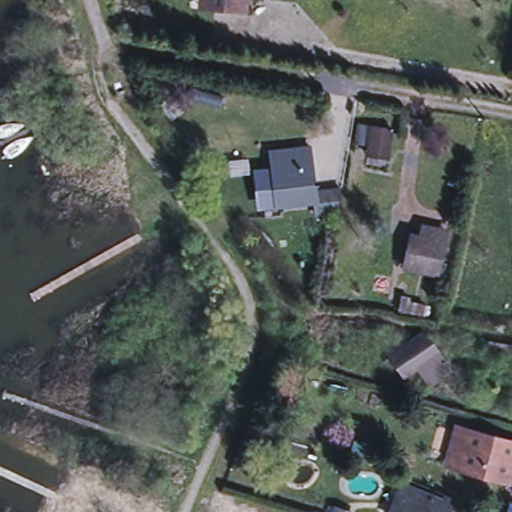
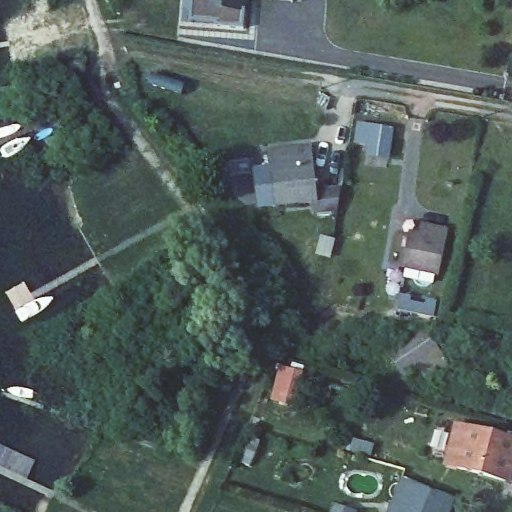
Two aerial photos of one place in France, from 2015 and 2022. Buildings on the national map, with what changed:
unchanged [(245,8),(209,5),(199,4),(199,0),(245,0),(245,8)]
unchanged [(366,155),(367,145),(355,144),(357,124),(390,128),(387,147),(387,157),(366,155)]
unchanged [(273,189),(272,178),(269,157),(308,152),(315,204),(285,207),(275,209),(273,189)]
unchanged [(404,265),(407,252),(411,254),(415,237),(418,225),(442,230),(439,242),(432,271),(404,265)]
unchanged [(405,299),(405,303),(422,306),(420,315),(394,312),(395,297),(405,299)]
unchanged [(327,324),(330,322),(332,322),(336,322),(339,324),(340,327),(341,330),(340,333),(339,336),(335,337),(332,338),(330,337),(327,336),(325,333),(324,330),(325,327),(327,324)]
unchanged [(392,362),(385,350),(402,338),(410,350),(427,337),(454,373),(432,388),(421,372),(415,376),(407,382),(392,362)]
unchanged [(512,344),(512,357),(485,353),(487,341),(512,344)]
unchanged [(506,485),(455,471),(445,467),(446,463),(455,428),(466,432),(512,444),(512,462),(506,485)]
unchanged [(455,500),(450,512),(392,512),(404,485),(414,488),(444,501),(446,496),(455,500)]
unchanged [(337,512),(333,512),(334,511),(337,512)]

